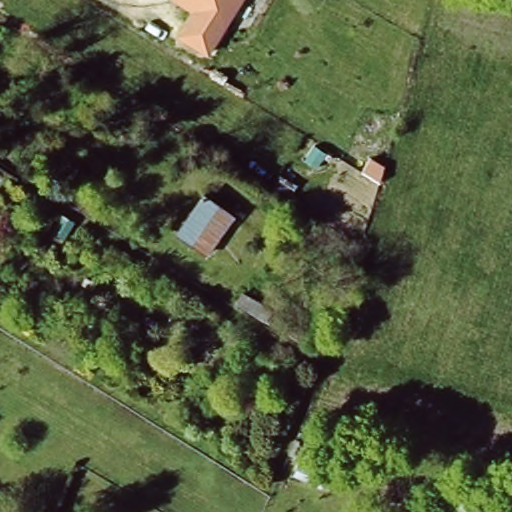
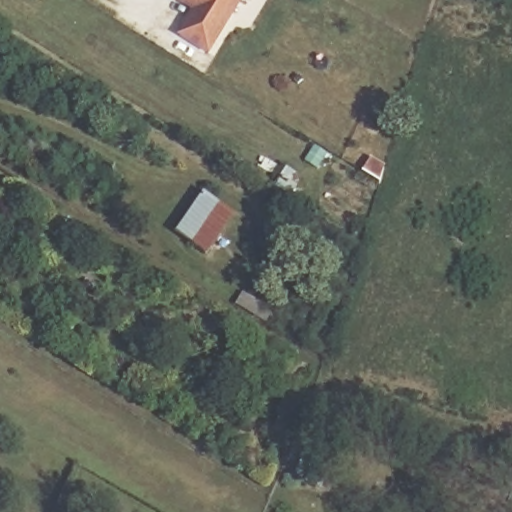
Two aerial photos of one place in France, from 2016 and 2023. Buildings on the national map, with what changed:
unchanged [(208,54),(176,35),(191,11),(173,0),(242,0),(208,54)]
unchanged [(188,238),(201,220),(196,216),(207,200),(235,219),(211,254),(188,238)]

